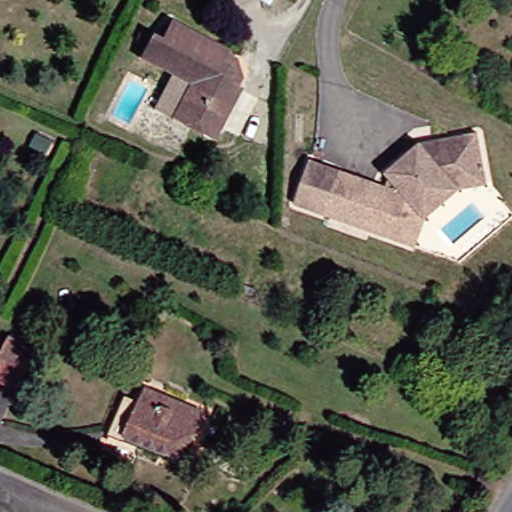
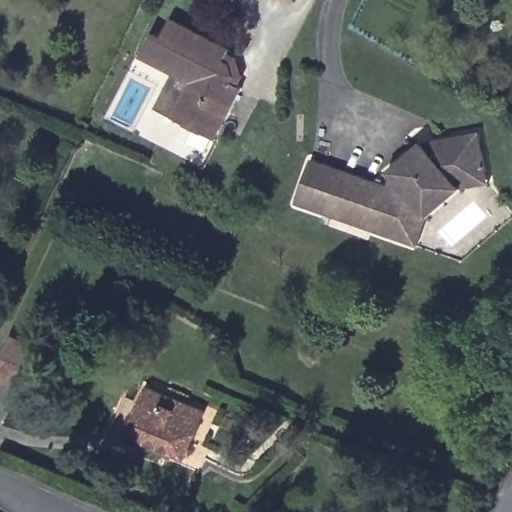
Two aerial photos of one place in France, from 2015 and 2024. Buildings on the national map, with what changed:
unchanged [(215,130),(208,144),(164,120),(182,85),(133,59),(146,35),(155,39),(165,21),(224,53),(222,55),(231,60),(237,80),(233,88),(236,90),(215,130)]
unchanged [(319,152),(393,183),(397,174),(394,169),(430,141),(443,140),(488,134),(493,172),(457,177),(421,205),(407,240),(301,196),(319,152)]
unchanged [(421,205),(457,177),(493,172),(494,185),(466,189),(430,216),(419,245),(407,240),(421,205)]
unchanged [(20,377),(0,368),(0,353),(13,326),(39,339),(20,377)]
unchanged [(106,437),(123,401),(136,407),(144,391),(201,414),(182,460),(168,455),(165,461),(121,443),(106,437)]

